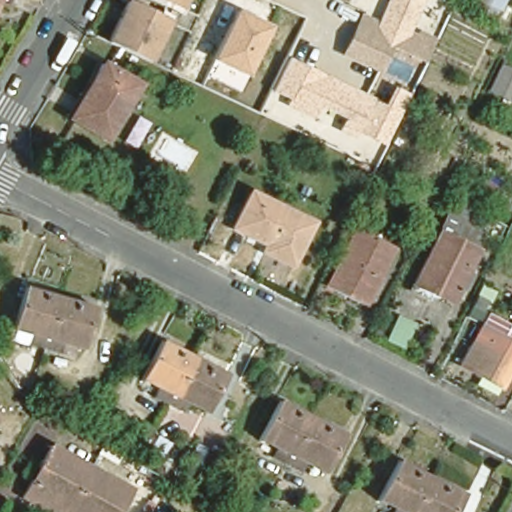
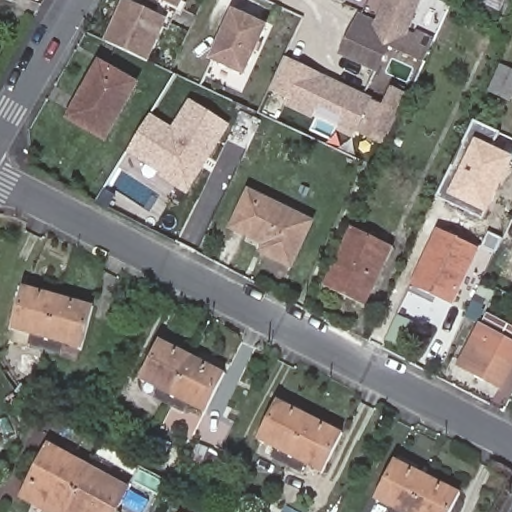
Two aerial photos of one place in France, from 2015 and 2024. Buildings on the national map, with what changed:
unchanged [(149,60),(117,45),(109,40),(128,0),(164,17),(166,24),(149,60)]
unchanged [(181,6),(175,8),(156,0),(184,0),(181,6)]
unchanged [(402,32),(376,20),(385,0),(424,0),(409,36),(402,32)]
unchanged [(485,12),(489,4),(479,0),(508,0),(500,19),(485,12)]
unchanged [(248,77),(212,60),(233,11),(270,25),(248,77)]
unchanged [(423,60),(386,44),(374,67),(340,52),(360,12),(430,46),(423,60)]
unchanged [(287,56),(323,73),(322,75),(372,99),(371,101),(355,133),(357,134),(355,140),(337,132),(344,117),(320,107),(312,120),(284,107),(287,99),(271,91),(287,56)]
unchanged [(105,134),(75,115),(97,84),(93,81),(107,61),(140,82),(105,134)]
new [(512,69),(512,99),(510,102),(487,91),(500,63),(512,69)]
unchanged [(371,101),(372,99),(385,105),(394,87),(395,87),(398,84),(405,87),(402,91),(406,93),(381,145),(357,134),(355,133),(371,101)]
new [(194,191),(170,176),(172,173),(136,149),(158,117),(181,132),(200,104),(235,127),(214,159),(209,167),(194,191)]
new [(474,122),(498,134),(491,147),(512,157),(512,166),(488,217),(447,197),(468,154),(461,150),(474,122)]
unchanged [(371,160),(365,157),(368,150),(375,153),(371,160)]
unchanged [(251,189),(312,222),(290,263),(261,247),(264,243),(236,228),(232,225),(234,222),(251,189)]
unchanged [(448,214),(463,221),(455,237),(464,221),(486,231),(478,248),(454,302),(432,292),(415,284),(418,277),(448,214)]
unchanged [(365,299),(325,279),(354,222),(392,241),(365,299)]
unchanged [(82,344),(64,339),(60,350),(32,342),(35,331),(15,326),(25,285),(94,304),(82,344)]
unchanged [(413,322),(400,348),(380,338),(395,312),(413,322)]
unchanged [(458,363),(488,313),(512,326),(512,364),(498,385),(458,363)]
unchanged [(209,413),(193,404),(188,413),(171,404),(161,398),(166,390),(148,380),(169,343),(196,358),(229,375),(209,413)]
unchanged [(326,469),(309,460),(304,469),(277,455),(282,446),(265,437),(285,401),(346,433),(326,469)]
unchanged [(122,444),(140,415),(156,425),(138,454),(122,444)]
unchanged [(51,440),(90,462),(130,484),(115,512),(60,512),(24,491),(51,440)]
unchanged [(380,499),(400,461),(462,494),(453,512),(395,512),(397,508),(380,499)]

